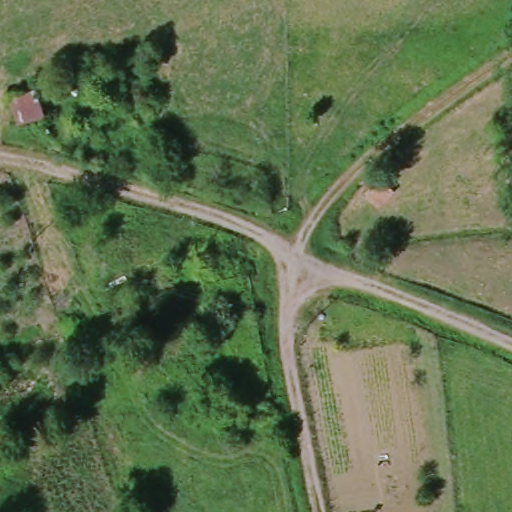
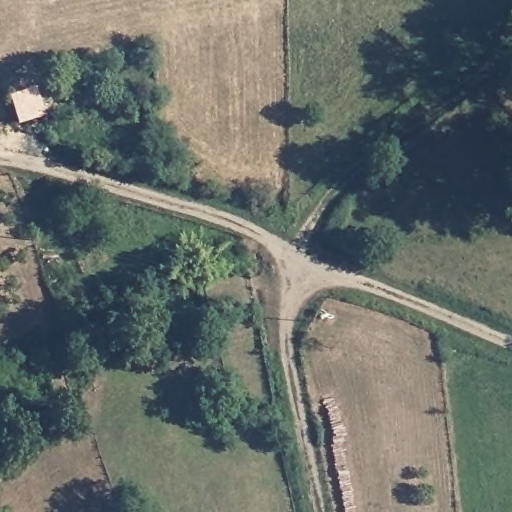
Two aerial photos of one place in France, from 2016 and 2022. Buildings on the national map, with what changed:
unchanged [(20,93),(50,93),(51,125),(20,124),(20,93)]

